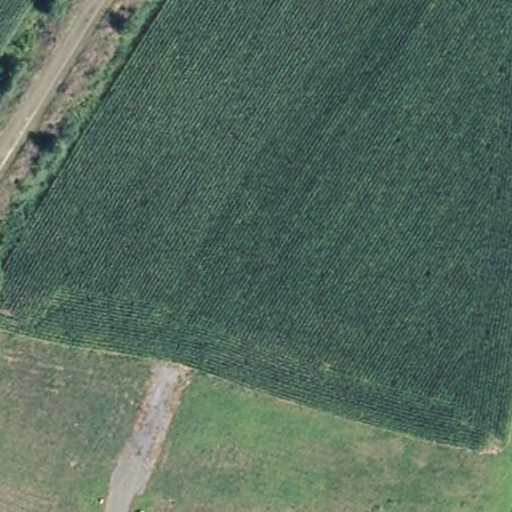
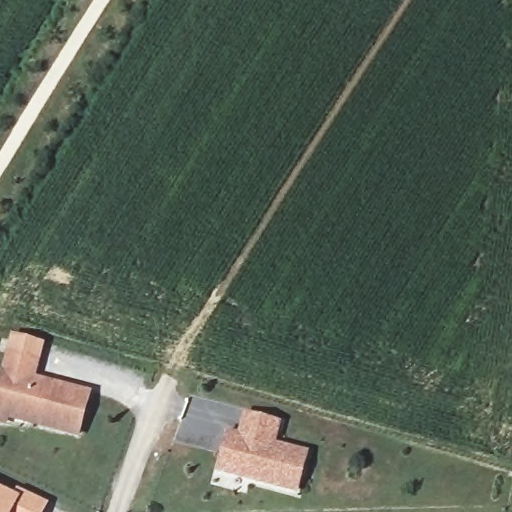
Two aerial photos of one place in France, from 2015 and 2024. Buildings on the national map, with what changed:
new [(79,437),(9,420),(7,426),(0,425),(0,381),(7,352),(41,360),(37,377),(91,392),(79,437)]
new [(297,494),(217,473),(227,432),(238,435),(244,413),(281,422),(276,443),(309,452),(297,494)]
new [(0,512),(0,488),(15,495),(18,488),(49,503),(45,512),(0,512)]

